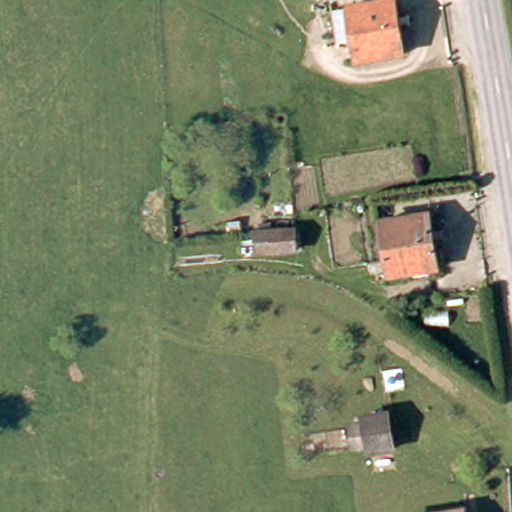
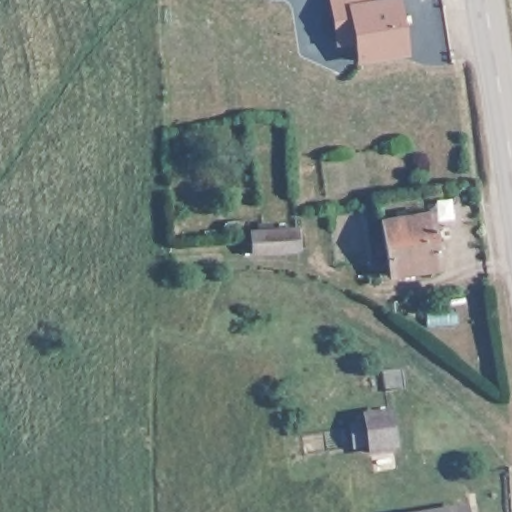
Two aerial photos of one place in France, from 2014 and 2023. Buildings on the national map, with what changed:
unchanged [(403,53),(357,60),(349,4),(377,0),(395,0),(403,53)]
unchanged [(436,267),(388,276),(376,217),(424,208),(436,267)]
unchanged [(289,228),(289,250),(248,251),(245,228),(289,228)]
unchanged [(367,451),(366,442),(350,442),(349,423),(366,423),(365,411),(389,411),(389,451),(367,451)]

